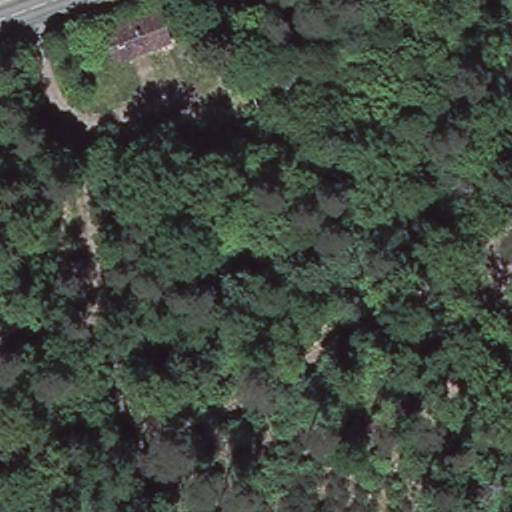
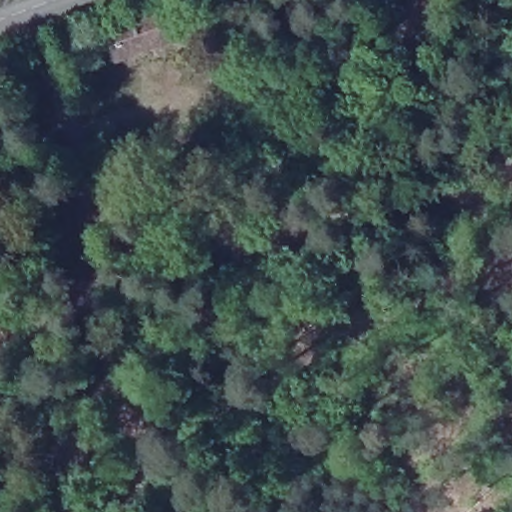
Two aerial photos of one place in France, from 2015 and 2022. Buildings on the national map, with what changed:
unchanged [(154,10),(167,46),(160,49),(167,74),(124,89),(101,30),(154,10)]
unchanged [(309,59),(321,90),(256,114),(244,82),(309,59)]

